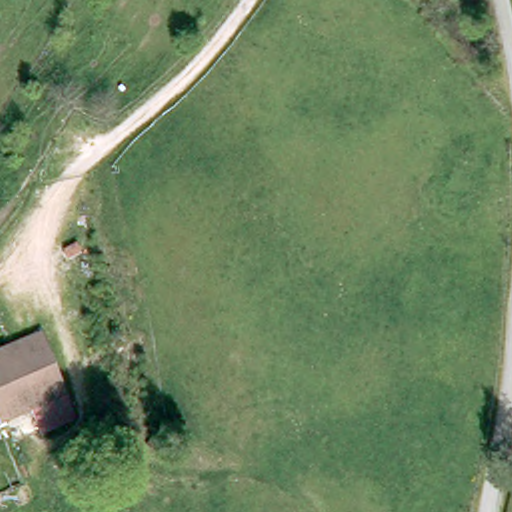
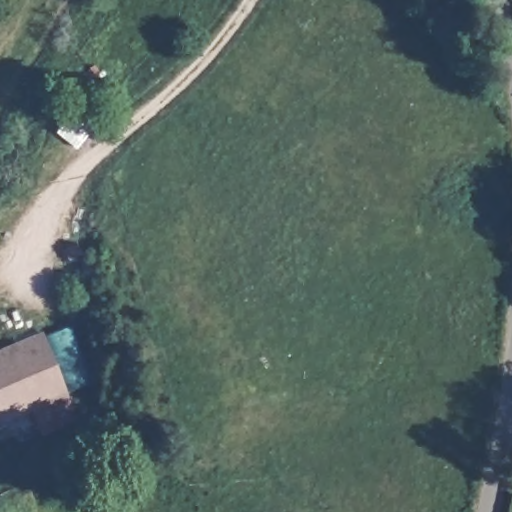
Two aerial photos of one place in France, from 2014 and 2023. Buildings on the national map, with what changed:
unchanged [(0,348),(41,334),(65,396),(25,412),(20,414),(0,421),(0,348)]

